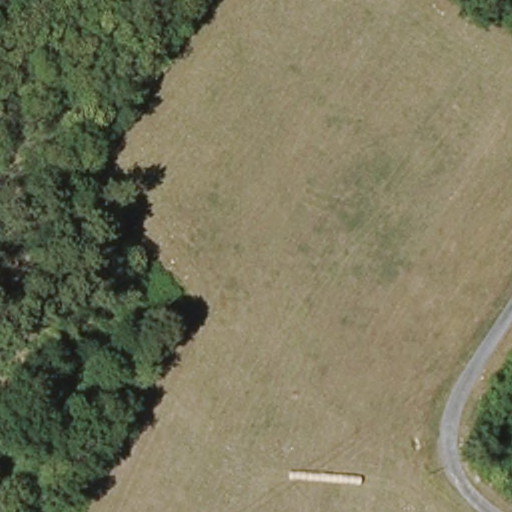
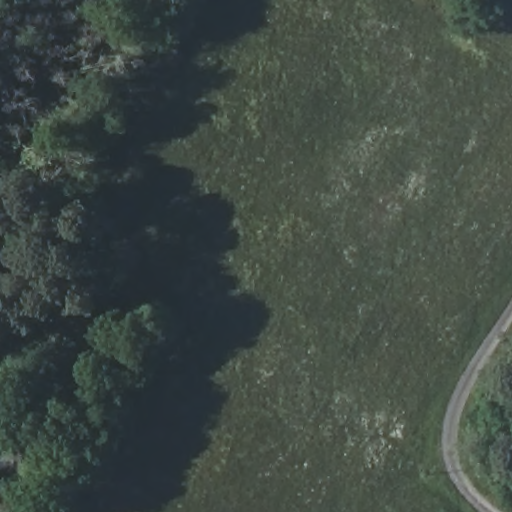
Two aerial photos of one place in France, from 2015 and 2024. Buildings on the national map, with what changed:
[]

